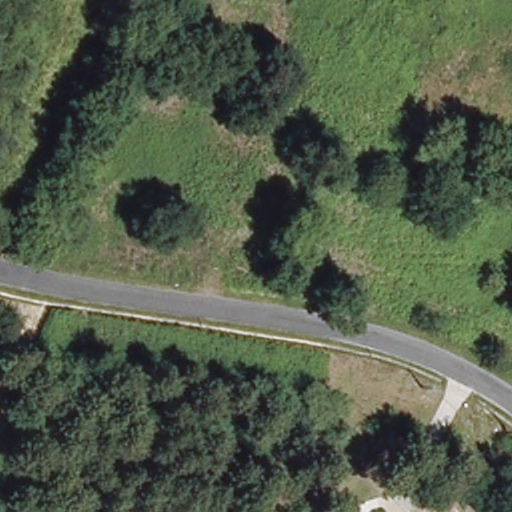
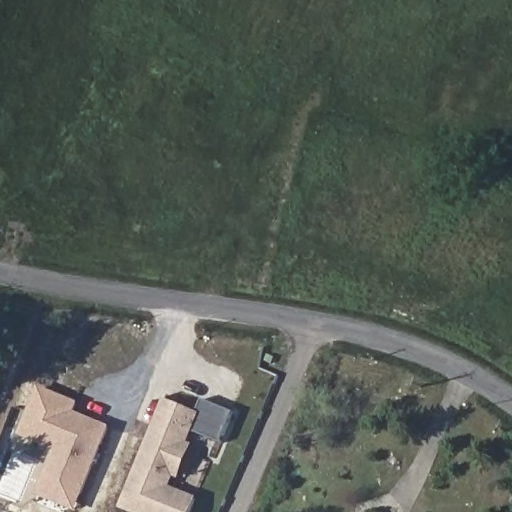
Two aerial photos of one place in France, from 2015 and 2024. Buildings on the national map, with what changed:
new [(74,401),(72,405),(75,412),(110,427),(74,512),(35,494),(54,450),(19,435),(39,386),(74,401)]
new [(119,508),(164,398),(201,413),(205,405),(229,415),(219,438),(195,428),(189,442),(194,444),(179,480),(174,477),(170,487),(196,497),(190,512),(128,512),(119,508)]

